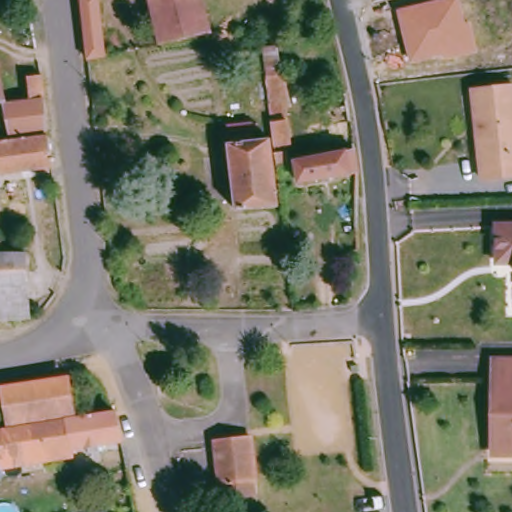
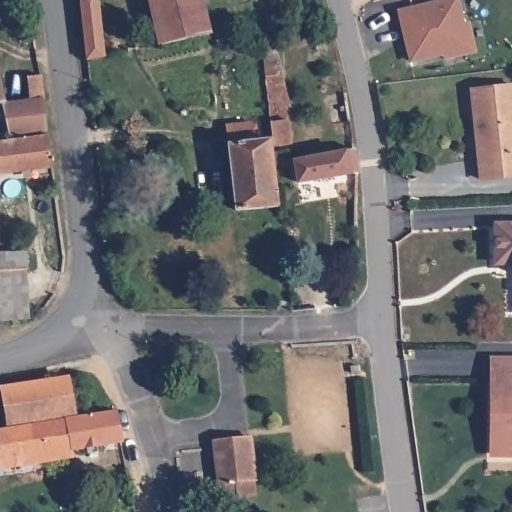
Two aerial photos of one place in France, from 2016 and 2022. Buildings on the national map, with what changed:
unchanged [(104,0),(110,62),(92,63),(85,0),(104,0)]
unchanged [(149,0),(203,0),(211,39),(159,50),(149,0)]
unchanged [(471,21),(478,53),(445,61),(443,56),(412,62),(397,10),(439,0),(460,0),(465,22),(471,21)]
unchanged [(280,50),(295,109),(285,111),(286,122),(289,122),(292,146),(277,148),(275,135),(267,52),(280,50)]
unchanged [(0,109),(0,64),(8,108),(0,109)]
unchanged [(37,104),(35,82),(49,81),(52,102),(55,131),(15,136),(10,108),(37,104)]
unchanged [(506,182),(484,184),(477,92),(512,90),(512,182),(506,182)]
unchanged [(239,215),(227,124),(255,120),(257,137),(275,135),(277,148),(278,152),(290,151),(292,161),(279,163),(285,210),(239,215)]
unchanged [(6,249),(0,249),(0,145),(56,137),(60,176),(7,182),(6,249)]
unchanged [(305,183),(301,162),(357,152),(358,176),(305,183)]
unchanged [(512,227),(512,265),(500,265),(498,227),(512,227)]
unchanged [(32,325),(0,327),(0,256),(31,256),(32,325)]
unchanged [(512,360),(512,457),(495,457),(497,360),(512,360)]
unchanged [(9,391),(77,379),(84,417),(80,417),(15,428),(12,412),(9,391)]
unchanged [(127,411),(133,442),(85,450),(80,417),(84,417),(127,411)]
unchanged [(10,466),(10,473),(0,475),(0,430),(15,428),(80,417),(85,450),(85,454),(10,466)]
unchanged [(223,499),(221,480),(217,441),(252,436),(257,476),(259,494),(223,499)]
unchanged [(143,512),(87,512),(86,503),(140,497),(143,512)]

